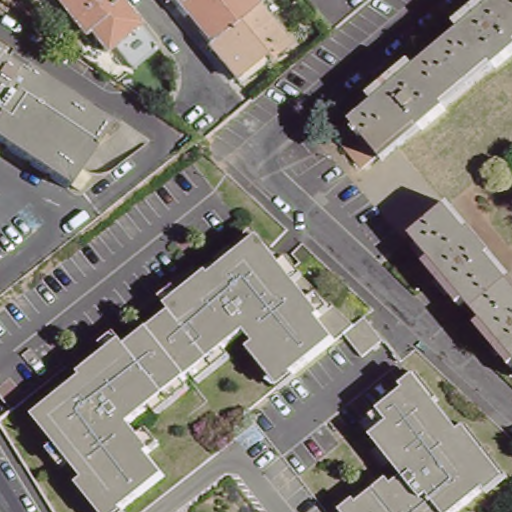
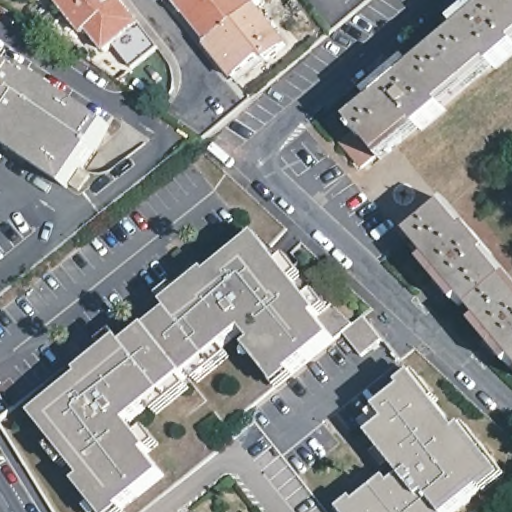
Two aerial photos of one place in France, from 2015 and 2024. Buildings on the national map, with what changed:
unchanged [(138,64),(119,40),(111,46),(94,25),(89,29),(66,0),(129,0),(163,45),(138,64)]
unchanged [(218,39),(211,46),(188,16),(175,0),(257,0),(262,6),(260,7),(218,39)]
unchanged [(498,65),(473,86),(449,106),(451,110),(426,130),(424,127),(386,158),(383,153),(366,167),(345,141),(361,128),(356,121),(379,103),(374,97),(416,62),(421,68),(444,49),(466,30),(462,25),(491,0),(512,0),(512,59),(500,68),(498,65)]
unchanged [(260,7),(291,46),(271,63),(267,58),(238,80),(211,46),(218,39),(260,7)]
unchanged [(3,55),(0,59),(24,75),(28,71),(112,127),(70,189),(0,142),(0,53),(3,55)]
unchanged [(83,191),(77,187),(85,173),(92,177),(83,191)]
unchanged [(487,316),(479,307),(470,296),(464,300),(431,260),(437,255),(417,231),(453,202),(474,227),(477,224),(499,250),(495,253),(512,274),(512,358),(482,321),(487,316)]
unchanged [(39,403),(83,367),(80,364),(119,333),(124,339),(168,302),(163,296),(199,268),(201,271),(246,235),(256,227),(269,242),(337,326),(279,374),(243,329),(128,422),(150,449),(146,452),(161,470),(110,511),(42,427),(29,411),(39,403)]
unchanged [(390,331),(369,348),(350,325),(371,308),(390,331)]
unchanged [(358,492),(361,497),(388,475),(394,482),(402,475),(371,436),(388,421),(378,410),(404,388),(401,384),(417,371),(459,428),(465,423),(509,475),(485,491),(457,512),(346,512),(341,505),(358,492)]

